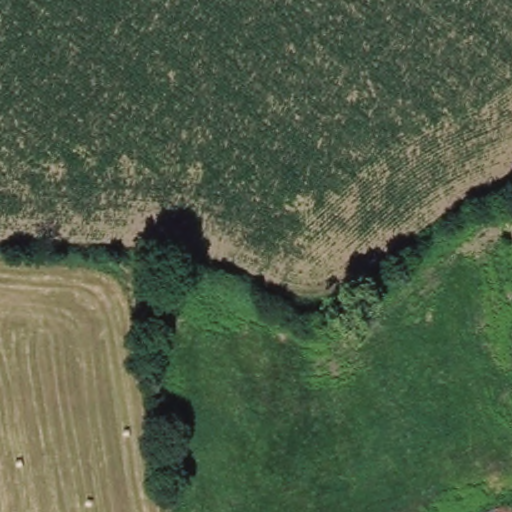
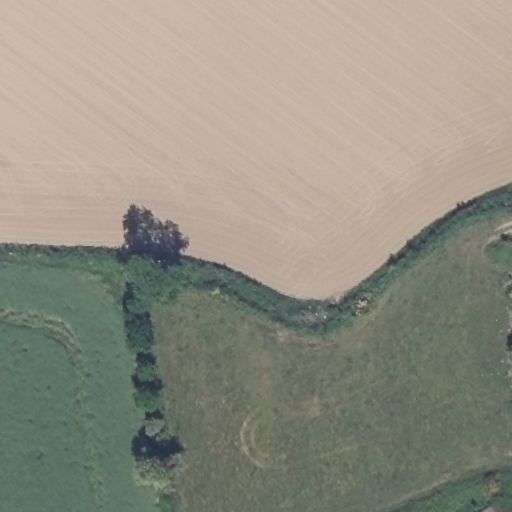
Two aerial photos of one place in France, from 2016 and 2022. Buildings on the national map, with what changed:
unchanged [(495,508),(512,506),(512,512),(488,512),(495,508)]

